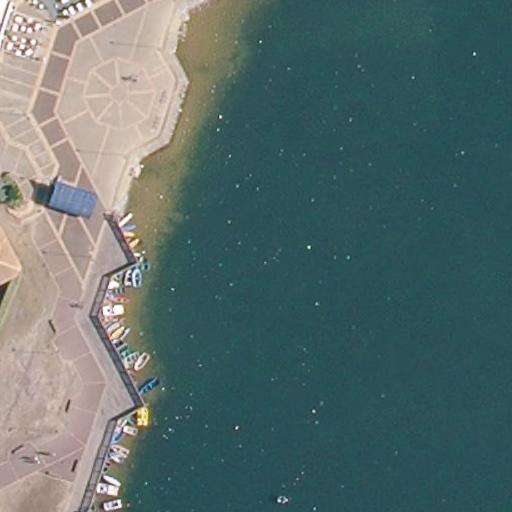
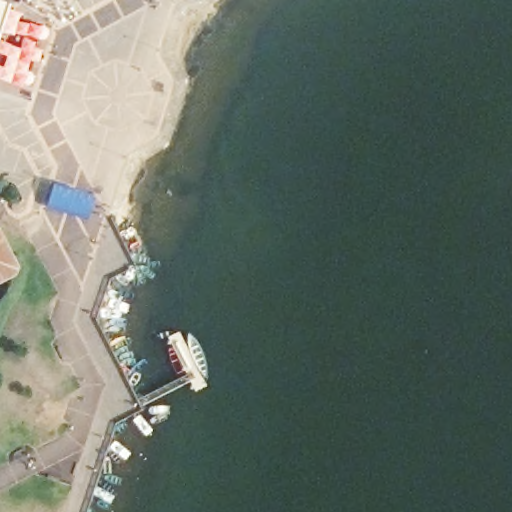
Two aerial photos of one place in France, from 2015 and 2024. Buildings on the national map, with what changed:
unchanged [(0,270),(0,232),(15,262),(0,270)]

